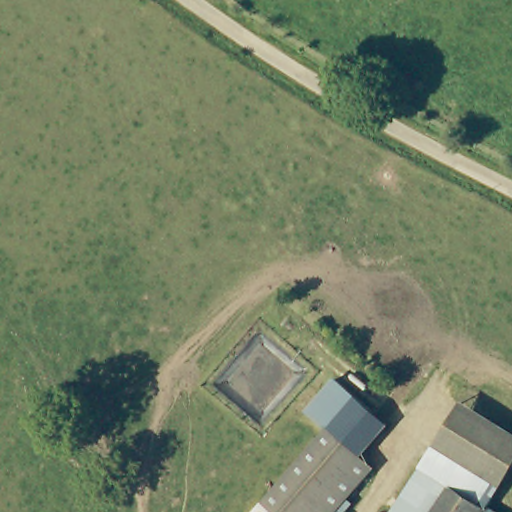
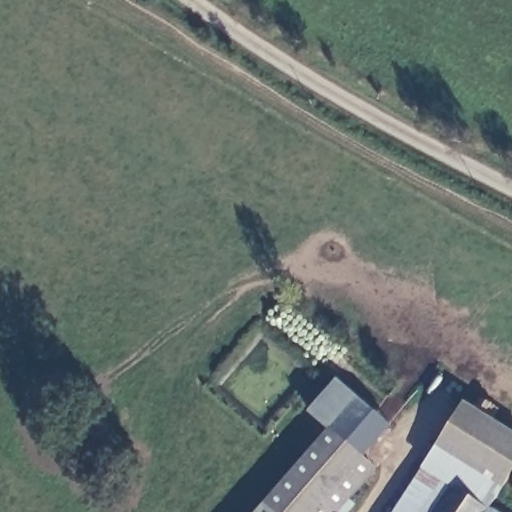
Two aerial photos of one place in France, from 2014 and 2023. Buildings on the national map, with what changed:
unchanged [(304,407),(330,374),(364,401),(385,417),(384,417),(359,450),(327,425),(304,407)]
unchanged [(512,455),(499,480),(469,462),(435,443),(432,441),(456,400),(512,430),(512,455)]
unchanged [(359,450),(374,462),(334,512),(302,512),(275,489),(327,425),(359,450)]
unchanged [(412,473),(443,491),(431,512),(389,512),(412,473)]
unchanged [(302,512),(255,512),(275,489),(302,512)]
unchanged [(479,512),(431,512),(443,491),(445,489),(448,490),(480,510),(479,512)]
unchanged [(482,507),(491,512),(479,512),(480,510),(482,507)]

